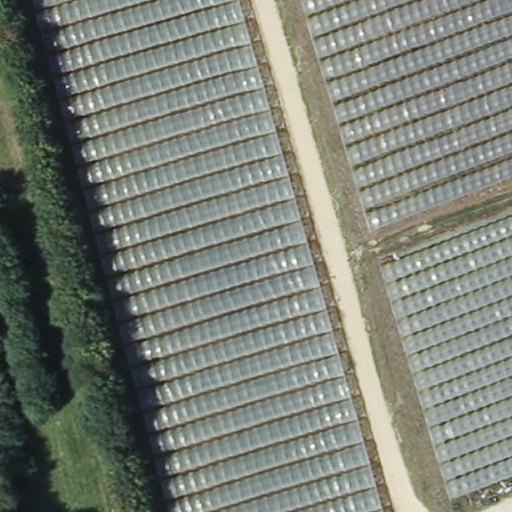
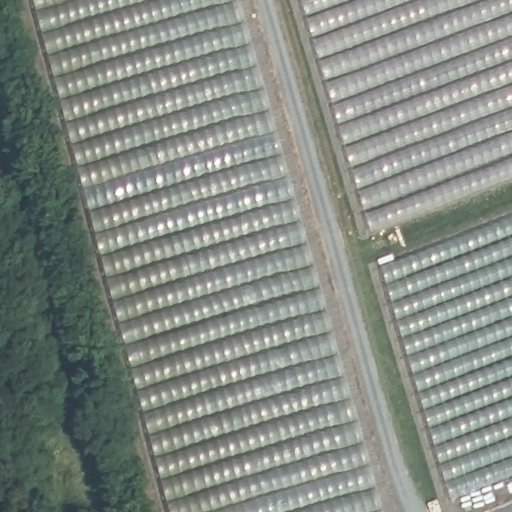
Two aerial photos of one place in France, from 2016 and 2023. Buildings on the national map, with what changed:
unchanged [(384,512),(168,512),(141,409),(83,185),(32,0),(241,0),(302,221),(384,512)]
unchanged [(371,228),(303,0),(512,0),(512,176),(371,228)]
unchanged [(454,498),(384,268),(512,220),(512,476),(454,498)]

